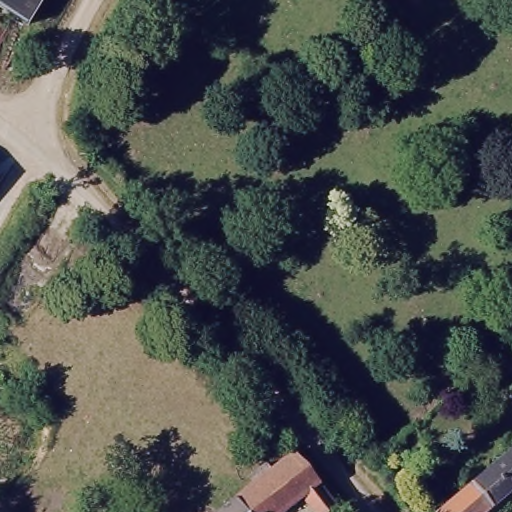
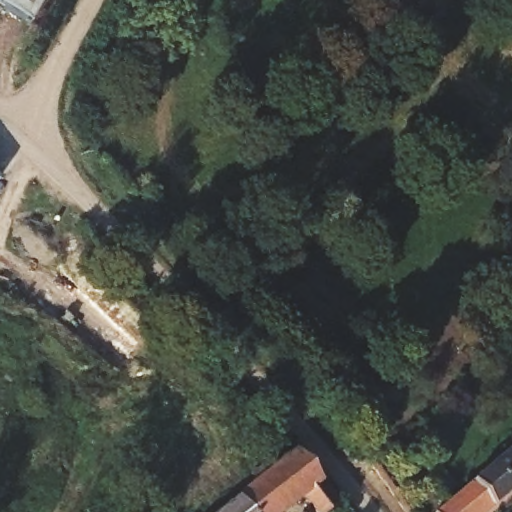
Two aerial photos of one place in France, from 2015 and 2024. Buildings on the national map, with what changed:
unchanged [(0,0),(44,0),(29,22),(0,3),(0,0)]
unchanged [(486,512),(436,512),(482,470),(512,442),(512,488),(486,512)]
unchanged [(232,497),(296,453),(338,504),(327,512),(307,512),(299,503),(287,512),(206,512),(229,495),(232,497)]

